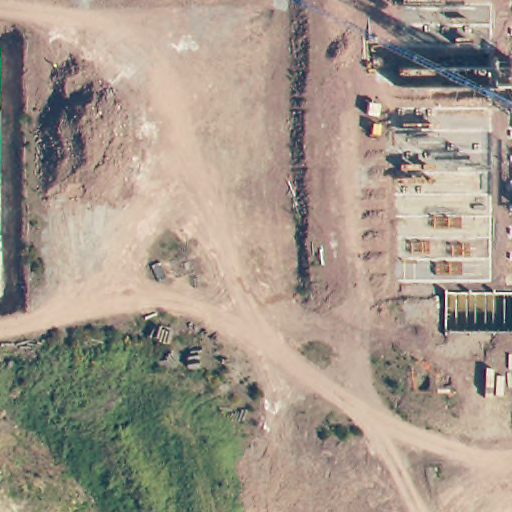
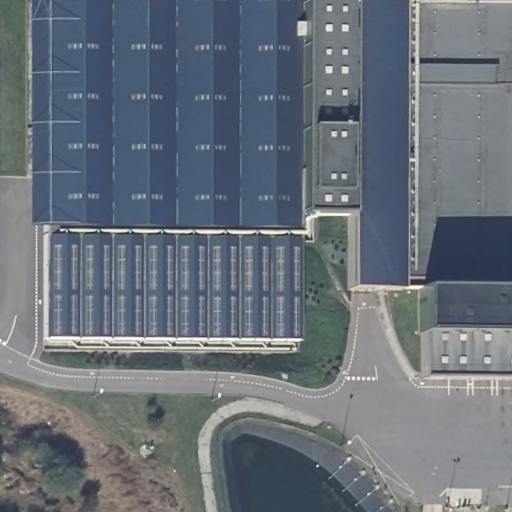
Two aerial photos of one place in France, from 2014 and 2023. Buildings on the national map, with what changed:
new [(420,379),(417,333),(418,290),(398,291),(346,291),(347,215),(300,216),(300,230),(293,230),(294,285),(298,285),(296,343),(42,341),(43,229),(24,229),(25,0),(512,0),(512,381),(420,379)]

